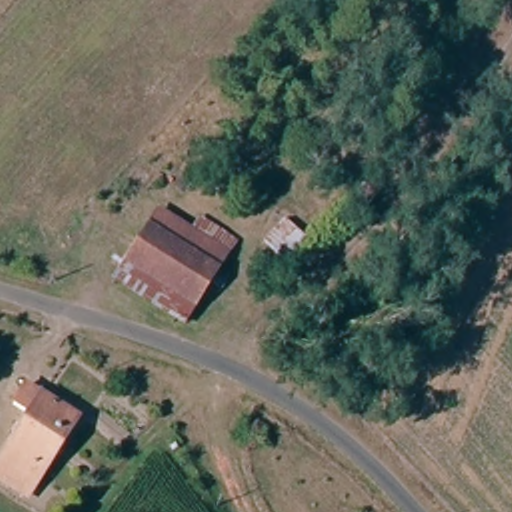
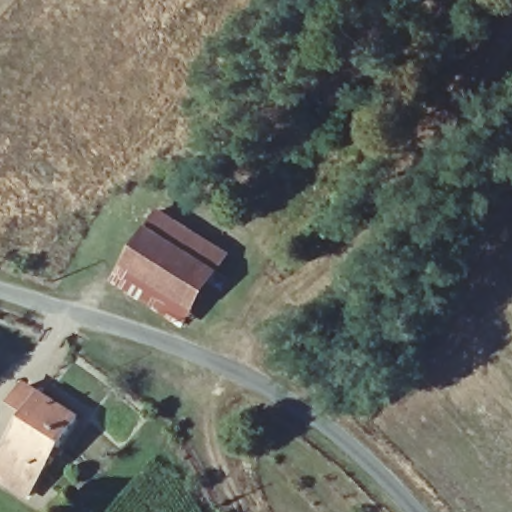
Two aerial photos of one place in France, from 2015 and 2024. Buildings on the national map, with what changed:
unchanged [(225,264),(193,313),(124,271),(156,220),(225,264)]
unchanged [(83,415),(32,495),(0,474),(0,468),(37,412),(20,401),(33,381),(83,415)]

